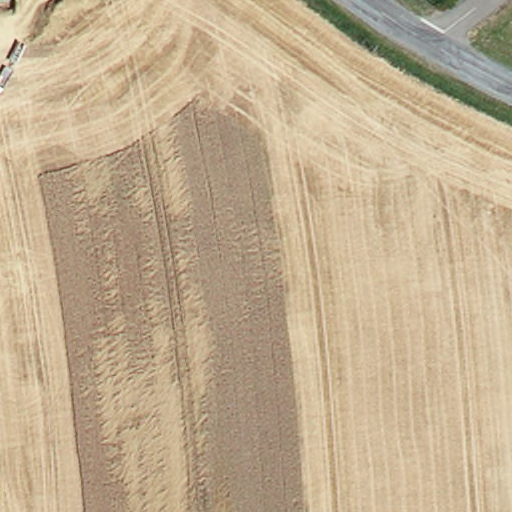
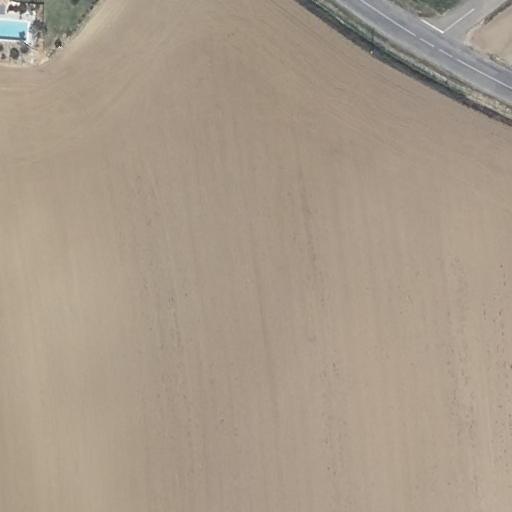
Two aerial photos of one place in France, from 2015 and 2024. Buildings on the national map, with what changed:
unchanged [(0,1),(0,0),(9,0),(9,1),(0,1)]

